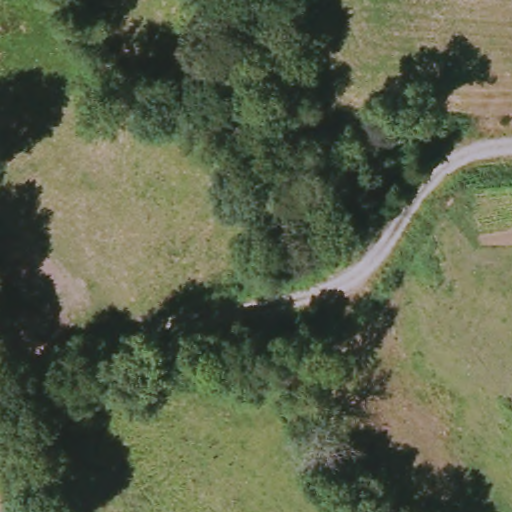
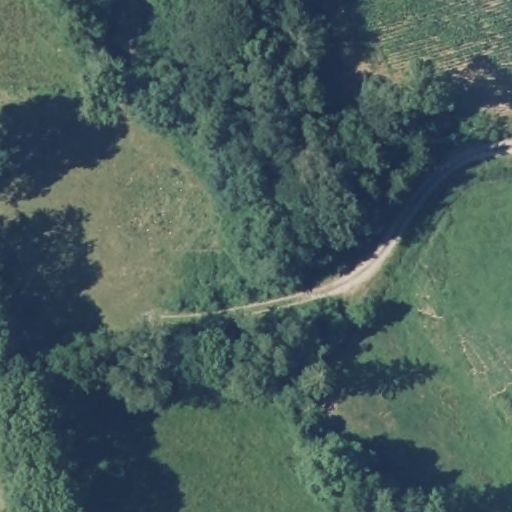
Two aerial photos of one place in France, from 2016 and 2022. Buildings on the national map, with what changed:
[]

